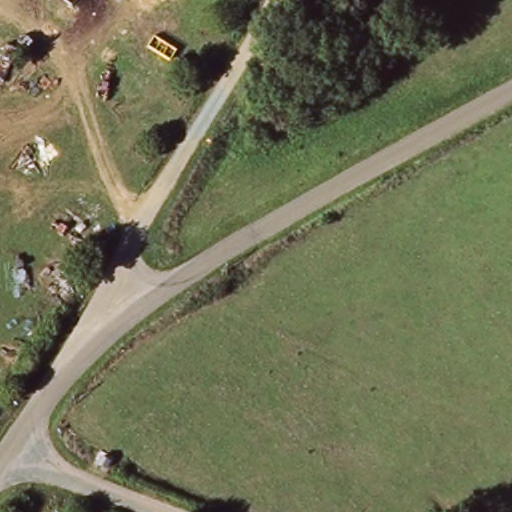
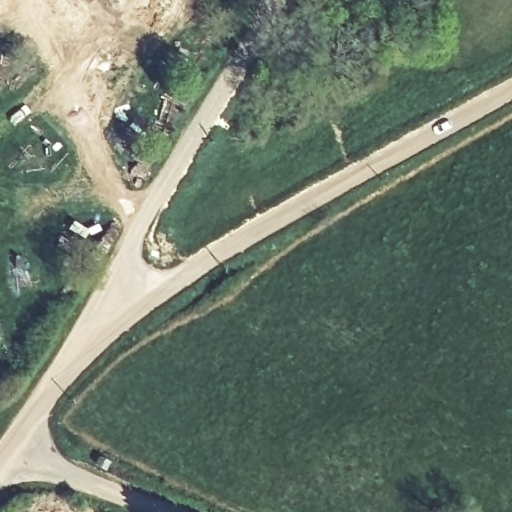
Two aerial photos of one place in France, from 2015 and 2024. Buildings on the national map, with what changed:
unchanged [(120,0),(121,0),(121,1),(120,0)]

